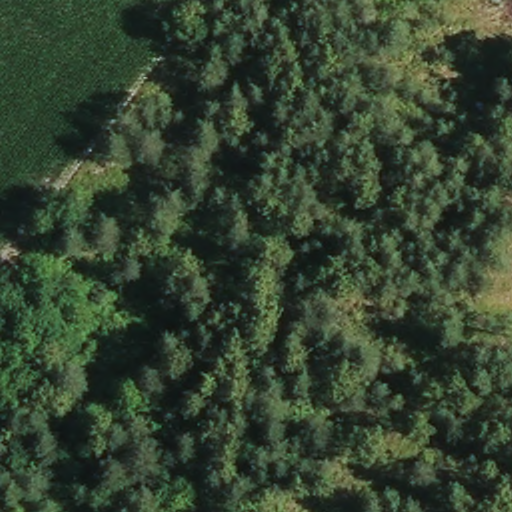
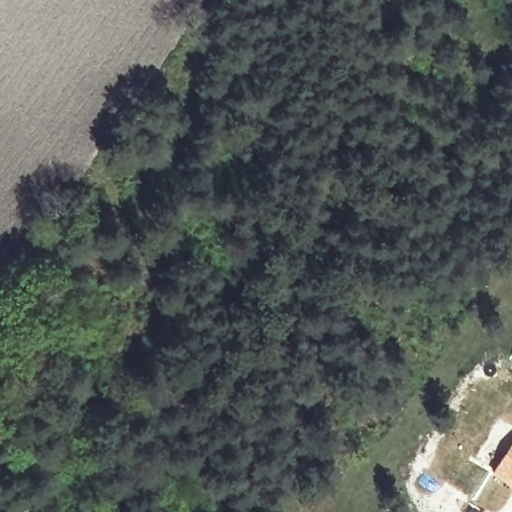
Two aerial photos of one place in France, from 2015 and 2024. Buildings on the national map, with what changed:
new [(490,472),(512,441),(512,487),(490,472)]

